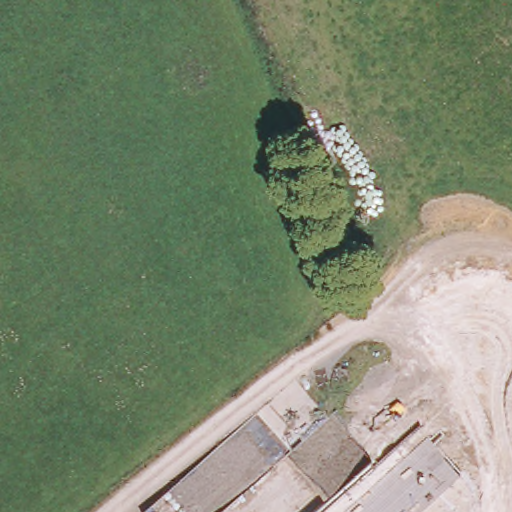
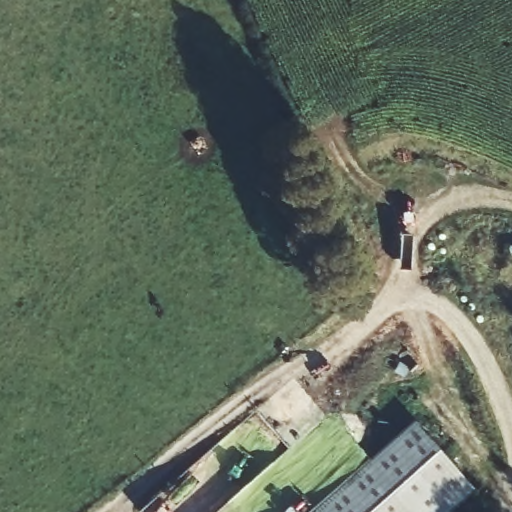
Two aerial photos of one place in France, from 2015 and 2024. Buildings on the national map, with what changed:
new [(479,484),(449,512),(315,512),(415,417),(479,484)]

